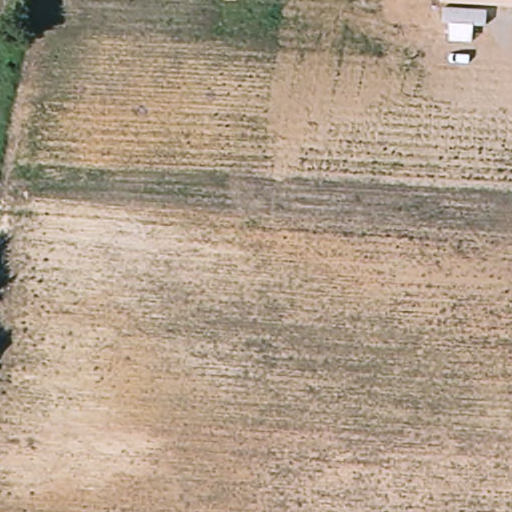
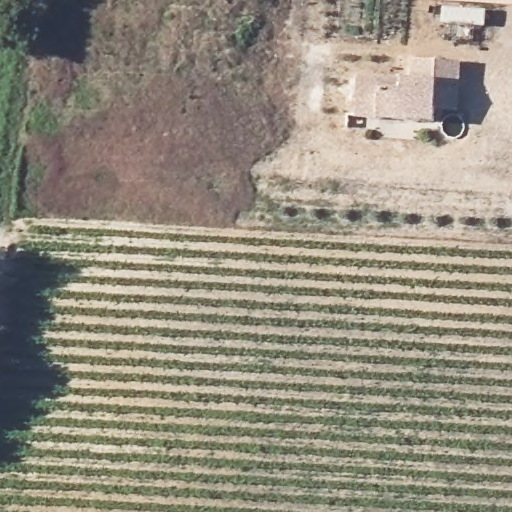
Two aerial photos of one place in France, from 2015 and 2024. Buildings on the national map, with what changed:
unchanged [(440,0),(512,0),(512,7),(439,2),(440,0)]
new [(443,105),(442,119),(364,112),(367,73),(420,77),(422,56),(469,59),(467,82),(465,106),(443,105)]

